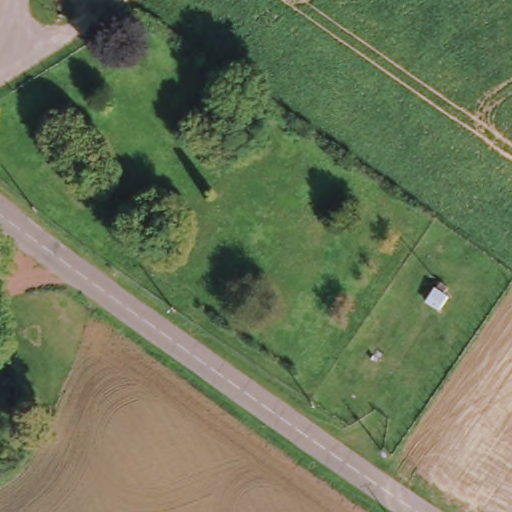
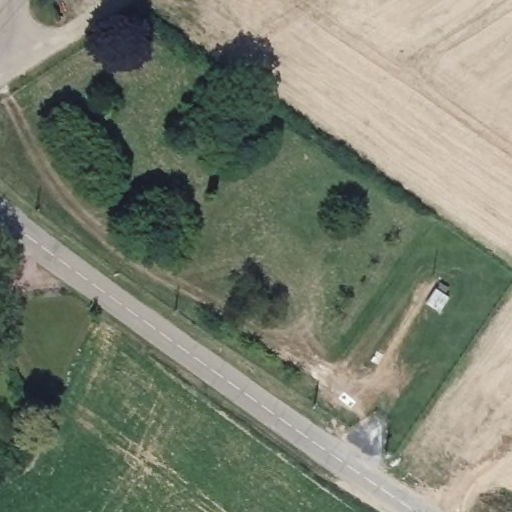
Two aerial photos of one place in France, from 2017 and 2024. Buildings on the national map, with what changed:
unchanged [(444,280),(454,288),(450,293),(454,296),(443,310),(429,299),(444,280)]

